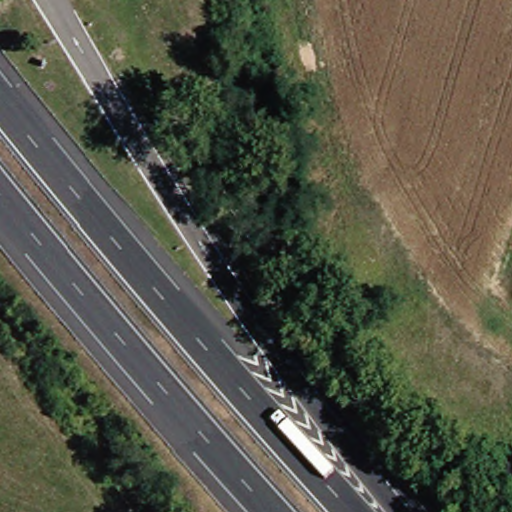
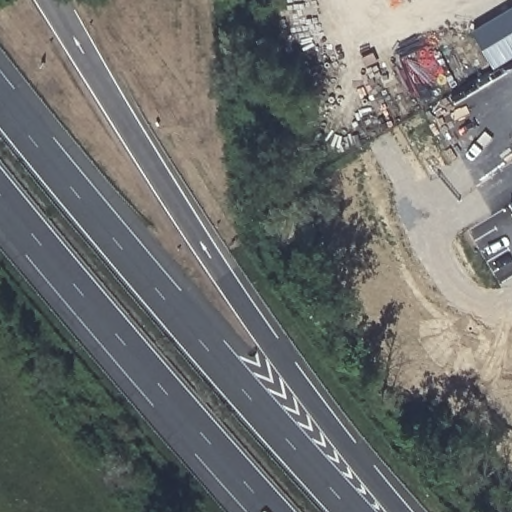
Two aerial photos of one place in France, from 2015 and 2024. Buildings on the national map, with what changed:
new [(512,6),(512,57),(493,68),(471,30),(512,6)]

